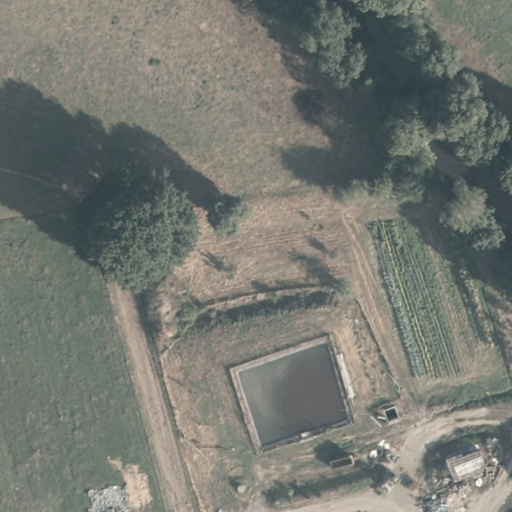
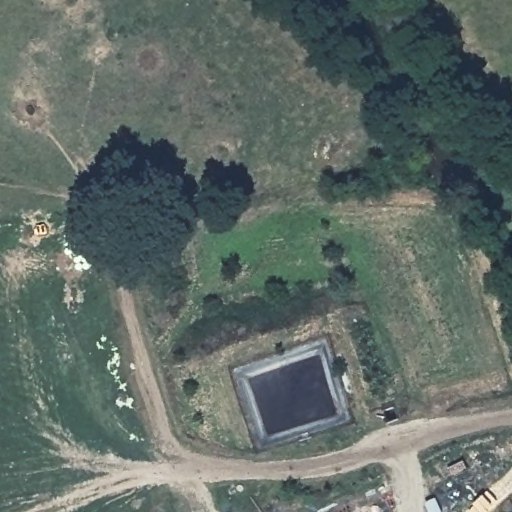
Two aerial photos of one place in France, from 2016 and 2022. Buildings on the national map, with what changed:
[]

